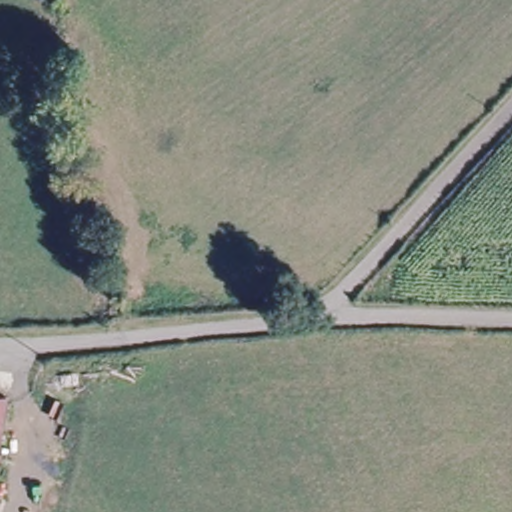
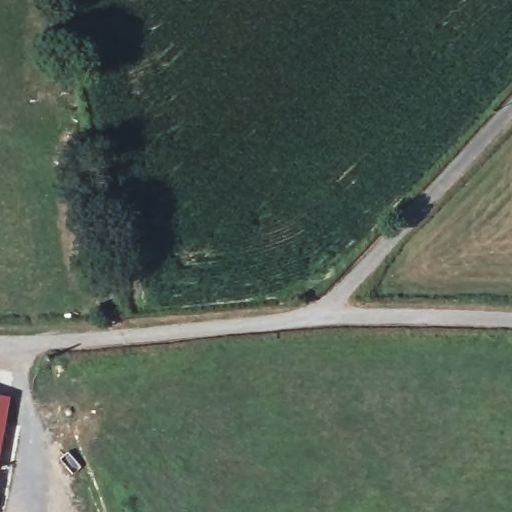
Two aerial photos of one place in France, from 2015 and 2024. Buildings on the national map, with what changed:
unchanged [(0,450),(0,391),(10,393),(0,450)]

